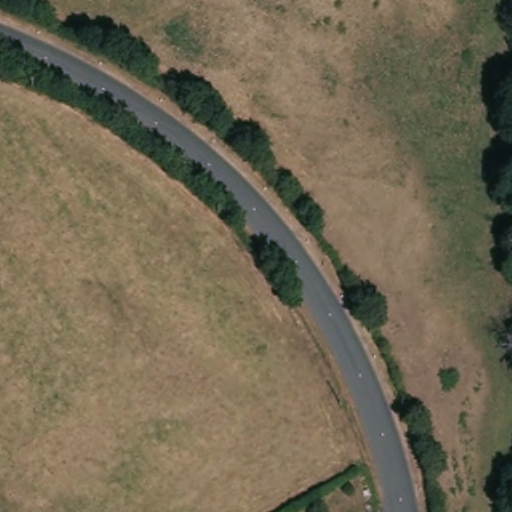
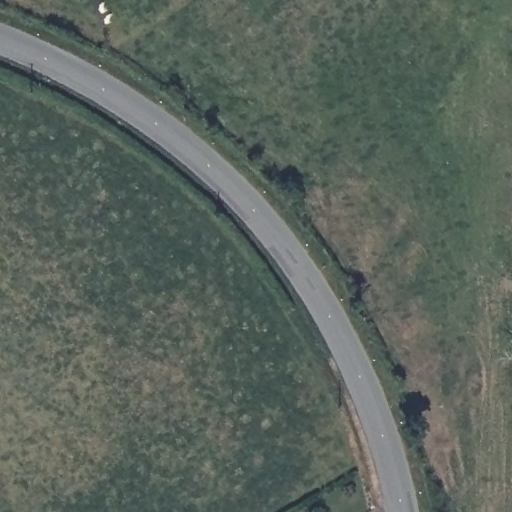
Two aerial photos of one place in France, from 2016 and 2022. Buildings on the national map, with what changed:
[]

